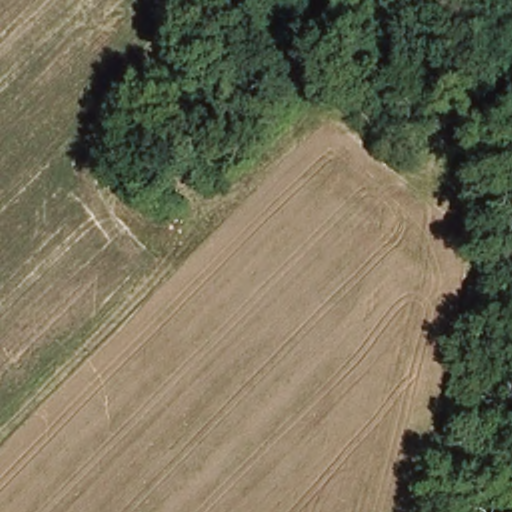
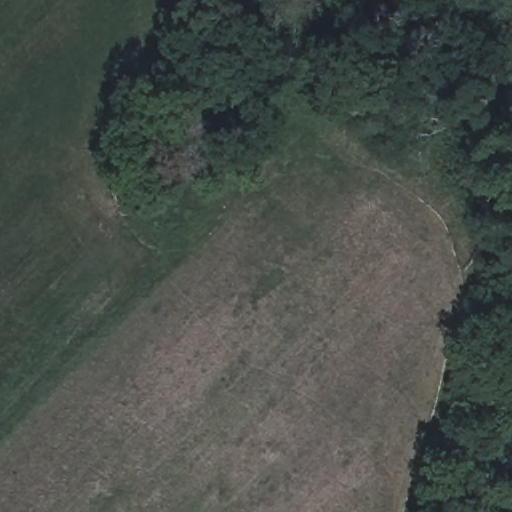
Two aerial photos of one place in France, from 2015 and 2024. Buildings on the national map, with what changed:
unchanged [(410,166),(401,184),(391,179),(399,160),(410,166)]

